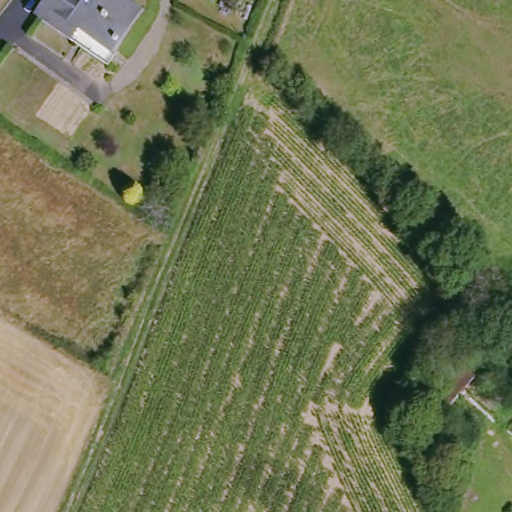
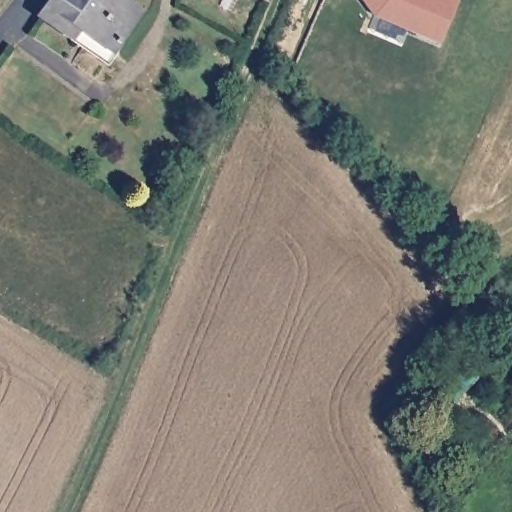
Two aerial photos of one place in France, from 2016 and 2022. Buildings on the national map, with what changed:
unchanged [(109,67),(43,20),(58,0),(119,0),(126,5),(123,10),(137,20),(141,24),(128,40),(109,67)]
new [(456,6),(438,49),(374,22),(358,0),(441,0),(456,6)]
unchanged [(466,380),(479,391),(457,415),(444,403),(466,380)]

